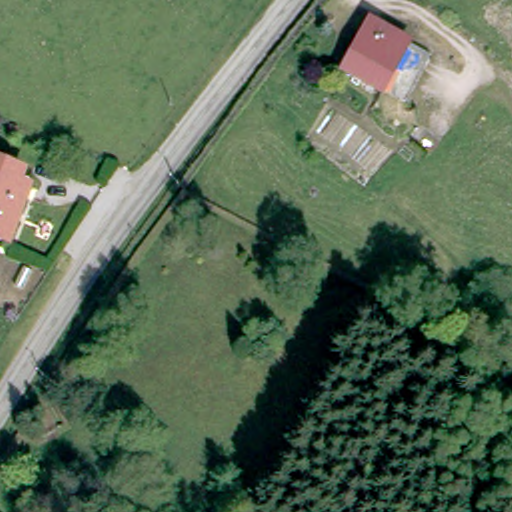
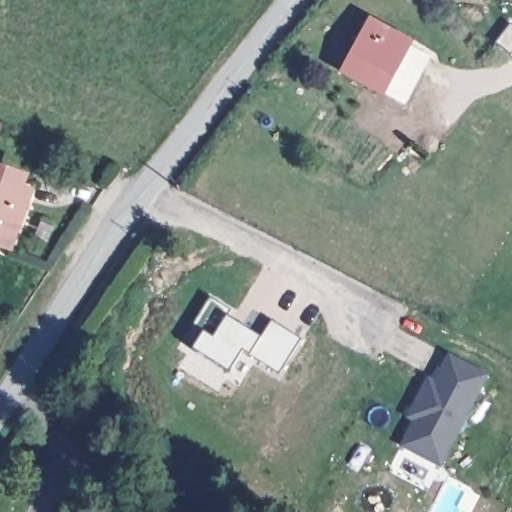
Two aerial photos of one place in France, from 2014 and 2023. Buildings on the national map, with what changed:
unchanged [(349,64),(357,49),(351,45),(367,15),(406,38),(382,82),(349,64)]
unchanged [(431,52),(408,96),(382,82),(406,38),(431,52)]
unchanged [(34,179),(15,235),(0,230),(0,167),(34,179)]
new [(231,372),(191,348),(202,332),(191,325),(209,296),(231,309),(227,315),(262,336),(272,319),(302,337),(280,372),(243,351),(231,372)]
new [(489,374),(440,470),(399,447),(413,420),(407,417),(429,376),(435,378),(448,353),(489,374)]

